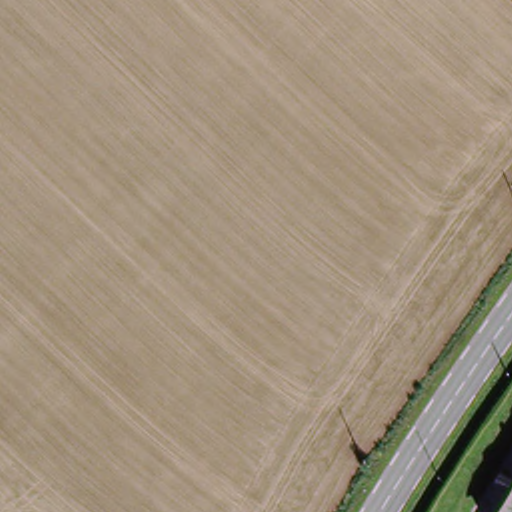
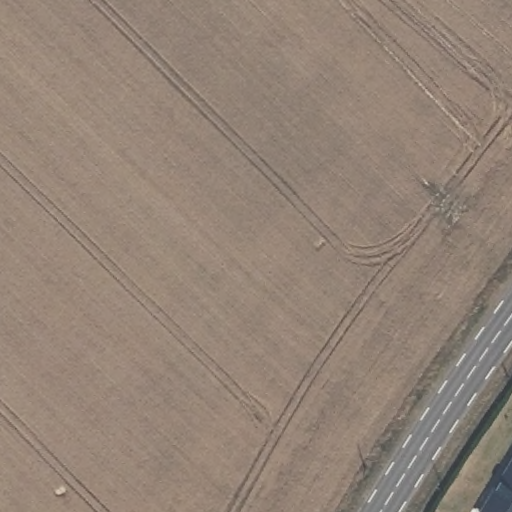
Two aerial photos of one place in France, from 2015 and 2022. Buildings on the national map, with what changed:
unchanged [(512,457),(512,512),(479,512),(512,457)]

